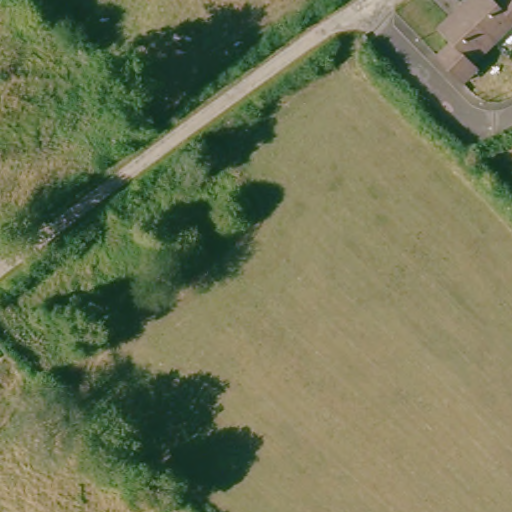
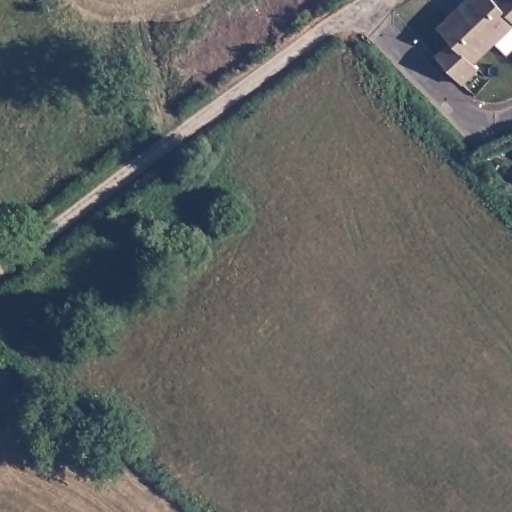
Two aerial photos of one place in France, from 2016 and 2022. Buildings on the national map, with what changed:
unchanged [(444,31),(479,0),(494,0),(500,7),(507,0),(512,0),(512,34),(475,66),(479,70),(463,85),(440,58),(455,45),(444,31)]

